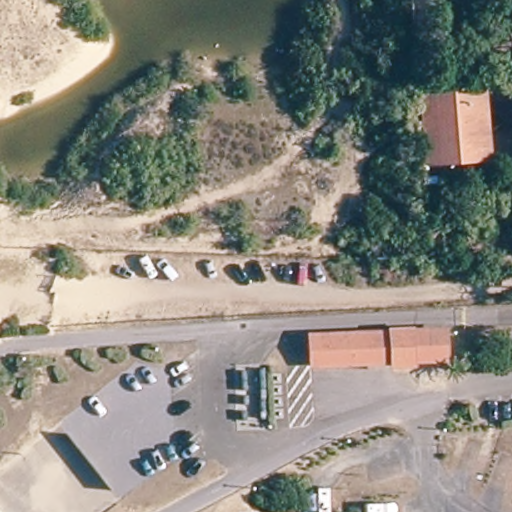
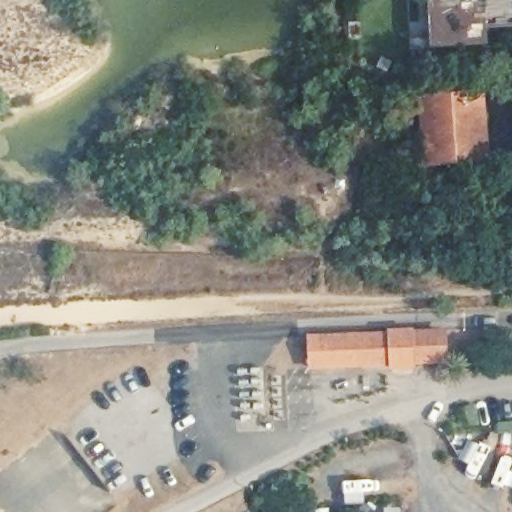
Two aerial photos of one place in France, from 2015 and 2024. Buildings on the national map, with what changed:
new [(489,45),(433,49),(430,0),(512,0),(512,28),(488,30),(489,45)]
demolished [(487,53),(486,41),(482,42),(478,0),(502,0),(507,51),(487,53)]
unchanged [(421,165),(417,104),(432,103),(481,100),(485,165),(436,168),(421,169),(421,165)]
unchanged [(414,362),(412,370),(391,370),(390,364),(311,367),(309,340),(388,337),(388,331),(412,331),(412,334),(443,334),(444,362),(414,362)]

